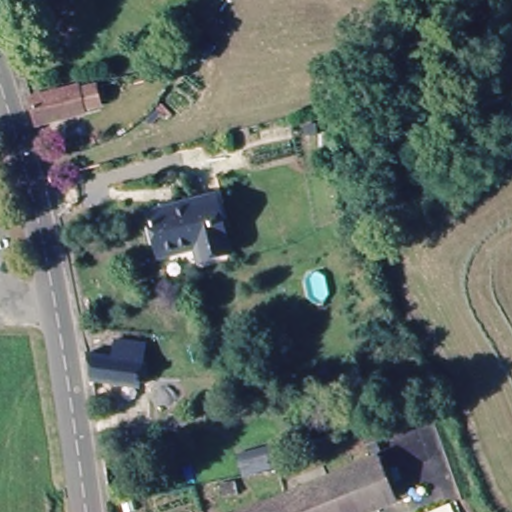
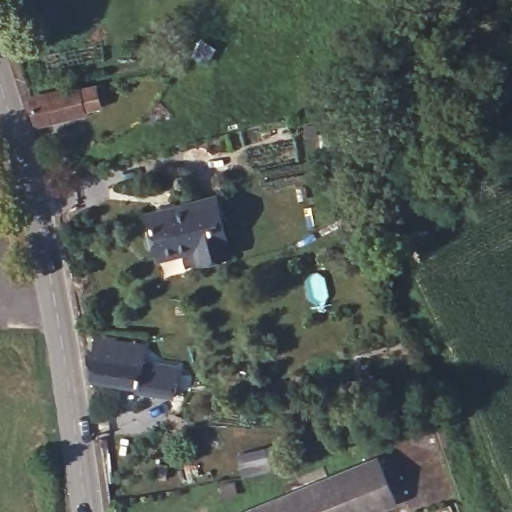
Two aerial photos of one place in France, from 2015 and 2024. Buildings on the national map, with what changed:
unchanged [(95,88),(97,111),(75,113),(31,117),(27,96),(71,91),(95,88)]
unchanged [(217,190),(233,248),(198,256),(193,241),(156,249),(145,208),(217,190)]
unchanged [(115,358),(118,339),(145,344),(139,377),(137,386),(94,379),(91,355),(115,358)]
unchanged [(384,461),(403,506),(387,512),(256,512),(384,461)]

